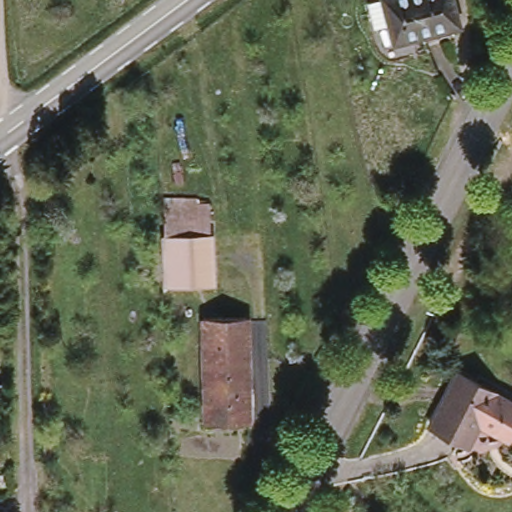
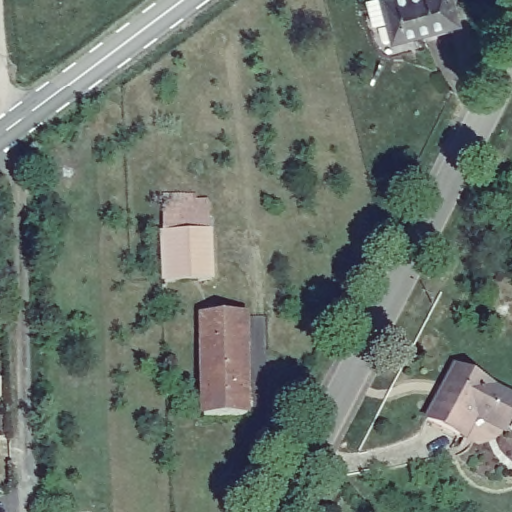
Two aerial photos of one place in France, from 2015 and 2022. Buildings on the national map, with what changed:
unchanged [(392,41),(381,0),(453,0),(459,23),(392,41)]
unchanged [(197,189),(198,197),(209,196),(211,228),(216,228),(217,278),(166,282),(164,194),(197,189)]
unchanged [(203,341),(203,314),(223,313),(246,313),(246,340),(247,416),(228,416),(204,416),(203,341)]
unchanged [(488,378),(488,380),(512,393),(512,416),(509,422),(474,404),(460,432),(428,415),(456,362),(488,378)]

